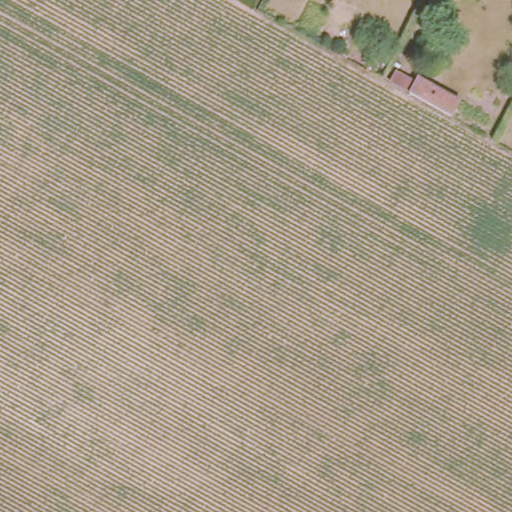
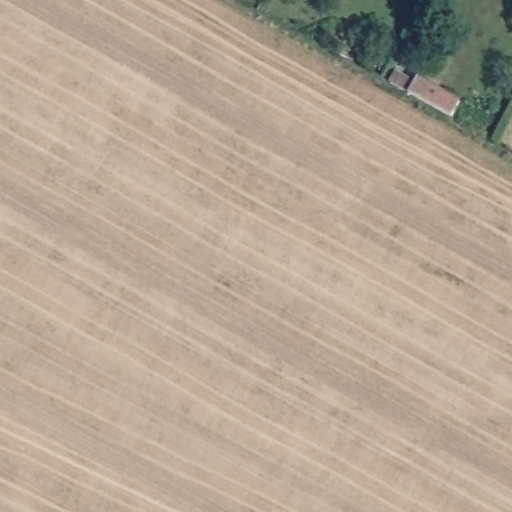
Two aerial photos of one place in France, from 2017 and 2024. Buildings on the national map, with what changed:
unchanged [(450,112),(407,89),(389,78),(395,69),(412,79),(455,102),(450,112)]

